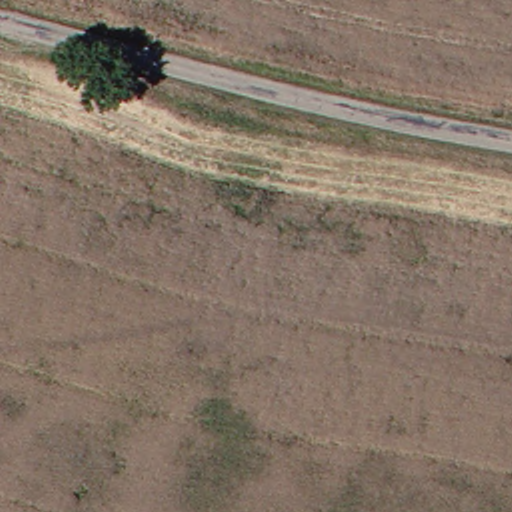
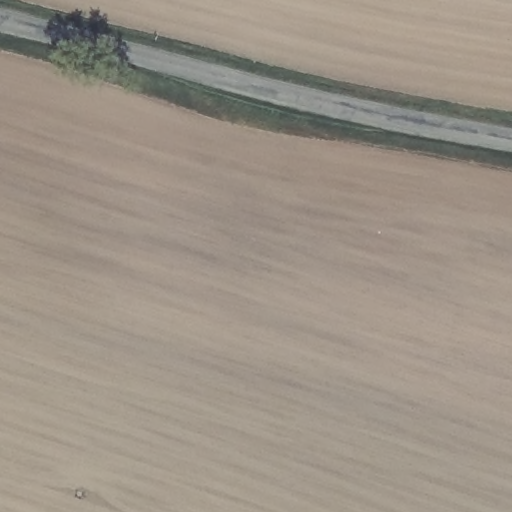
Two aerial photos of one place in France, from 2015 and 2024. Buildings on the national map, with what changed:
[]

